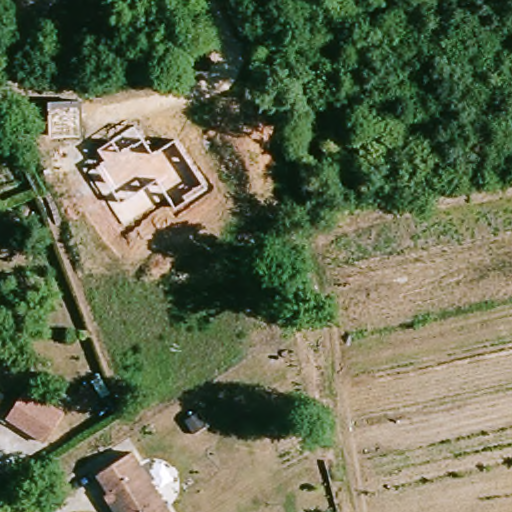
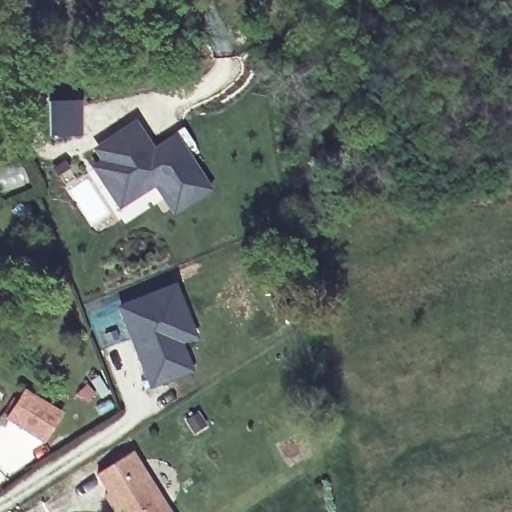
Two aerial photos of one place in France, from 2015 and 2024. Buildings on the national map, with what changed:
new [(53,100),(83,100),(83,135),(53,135),(53,100)]
unchanged [(154,152),(176,138),(207,187),(176,208),(157,180),(121,203),(97,166),(105,161),(96,149),(135,124),(154,152)]
new [(172,285),(193,338),(178,343),(190,372),(148,388),(136,356),(144,353),(140,344),(137,345),(121,306),(168,287),(172,285)]
unchanged [(48,443),(26,427),(13,418),(34,390),(46,399),(69,414),(48,443)]
unchanged [(185,435),(172,443),(165,430),(177,423),(185,435)]
unchanged [(112,493),(116,491),(105,472),(140,452),(176,512),(122,512),(120,509),(112,493)]

